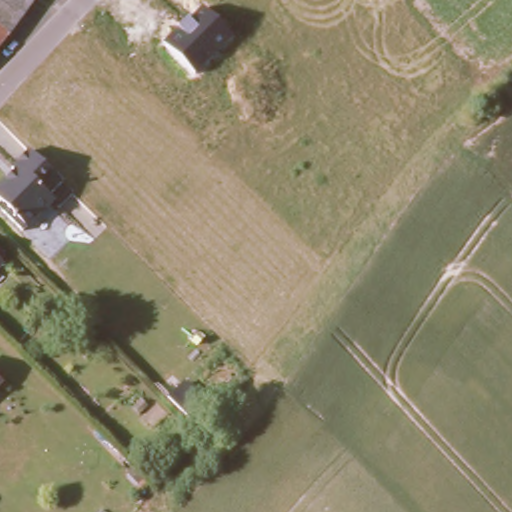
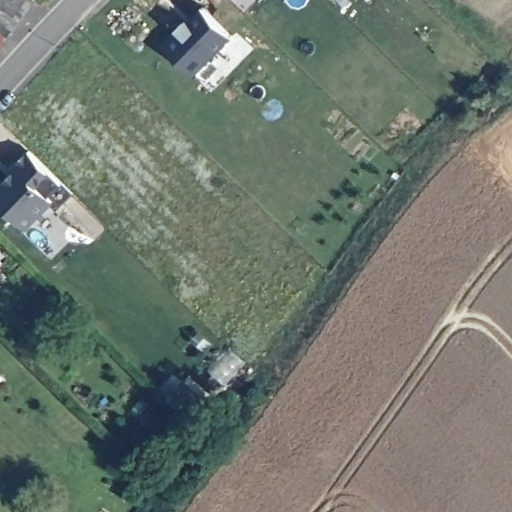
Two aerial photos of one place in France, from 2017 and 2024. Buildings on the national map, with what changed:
unchanged [(33,0),(10,29),(0,42),(0,0),(33,0)]
unchanged [(196,76),(163,43),(177,29),(187,18),(202,7),(234,37),(196,76)]
unchanged [(13,169),(9,164),(28,147),(67,185),(25,229),(0,204),(0,182),(13,169)]
unchanged [(12,263),(0,275),(0,251),(12,263)]

